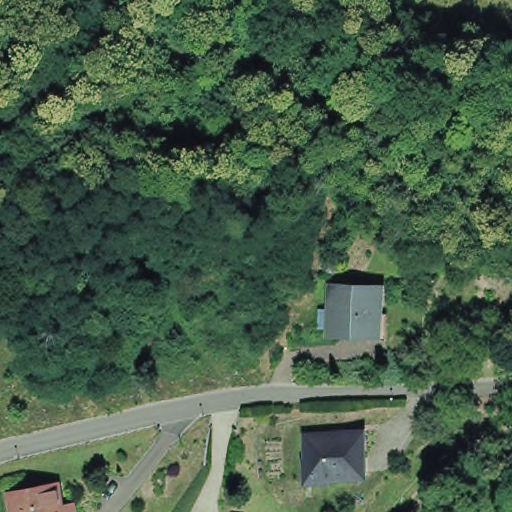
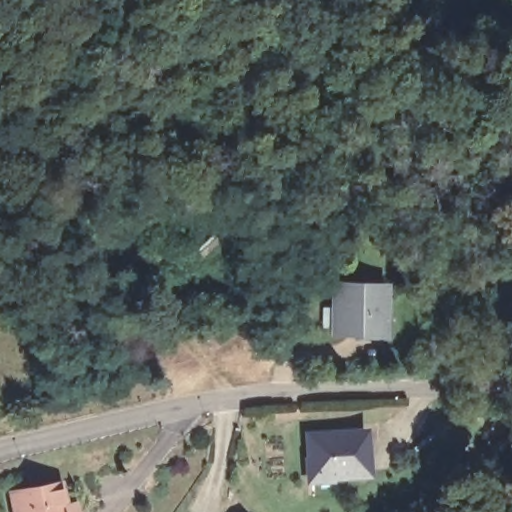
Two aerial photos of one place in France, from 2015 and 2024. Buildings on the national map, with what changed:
unchanged [(389,332),(340,330),(342,289),(391,290),(389,332)]
unchanged [(140,375),(140,384),(133,384),(132,377),(140,375)]
unchanged [(365,438),(368,479),(312,482),(310,441),(365,438)]
unchanged [(14,497),(60,486),(65,508),(77,506),(79,512),(18,512),(14,497)]

